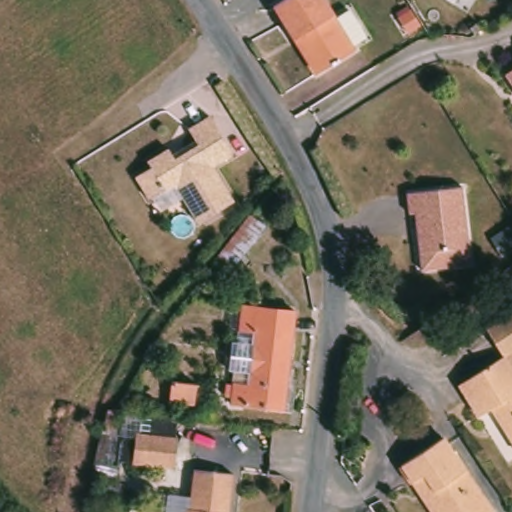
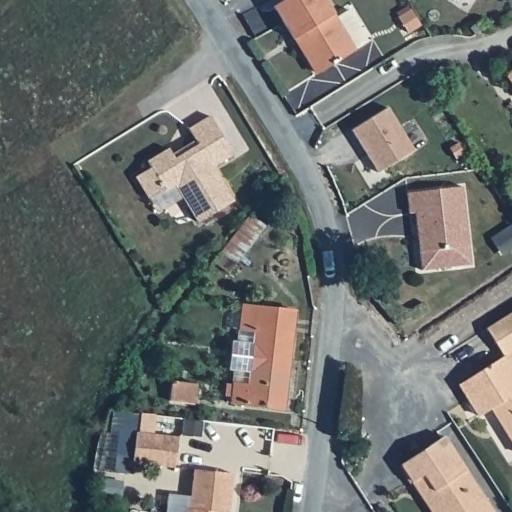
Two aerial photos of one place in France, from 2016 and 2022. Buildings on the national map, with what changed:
unchanged [(269,6),(278,0),(320,0),(331,16),(343,8),(361,36),(347,44),(351,48),(317,71),(310,74),(287,38),(269,6)]
unchanged [(481,32),(475,26),(481,21),(486,27),(481,32)]
unchanged [(506,77),(512,73),(512,86),(506,77)]
new [(387,108),(414,151),(378,173),(352,131),(387,108)]
unchanged [(207,122),(232,161),(214,172),(234,206),(200,227),(177,190),(150,207),(136,185),(151,176),(145,169),(167,156),(170,161),(193,147),(186,135),(207,122)]
unchanged [(461,263),(430,268),(421,210),(415,211),(412,191),(467,183),(477,242),(479,261),(461,263)]
unchanged [(256,213),(268,225),(232,272),(219,261),(256,213)]
unchanged [(496,235),(512,225),(512,249),(507,252),(496,235)]
unchanged [(284,414),(230,407),(232,386),(248,388),(255,337),(238,335),(241,309),(295,315),(284,414)]
unchanged [(492,414),(479,422),(467,403),(458,391),(471,382),(503,362),(486,333),(497,326),(512,316),(512,449),(492,414)]
unchanged [(234,375),(228,373),(232,345),(237,347),(238,335),(255,337),(248,388),(232,386),(234,375)]
unchanged [(194,408),(170,406),(172,386),(196,389),(194,408)]
unchanged [(180,442),(177,471),(135,467),(139,437),(180,442)]
unchanged [(402,469),(442,443),(489,512),(429,512),(413,487),(402,469)]
unchanged [(232,473),(228,512),(185,512),(185,509),(189,510),(192,469),(232,473)]

